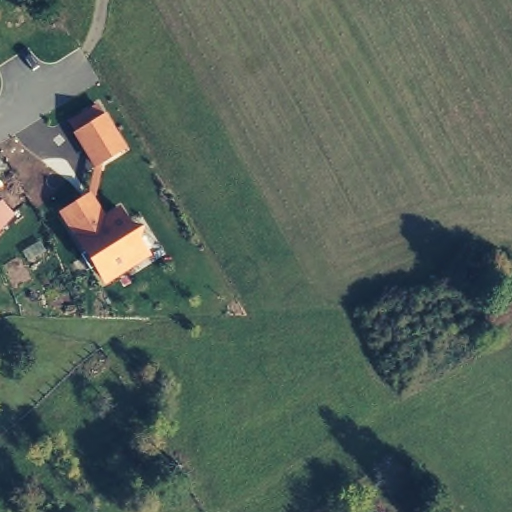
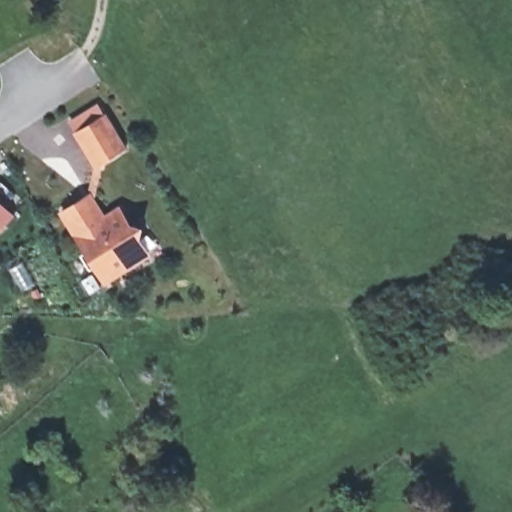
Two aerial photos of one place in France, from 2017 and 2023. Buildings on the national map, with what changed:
unchanged [(75,131),(69,121),(98,103),(106,114),(125,149),(103,163),(95,198),(106,215),(120,206),(130,223),(142,226),(140,239),(150,256),(104,285),(75,239),(59,212),(89,193),(95,167),(75,131)]
unchanged [(14,216),(0,229),(0,201),(14,216)]

